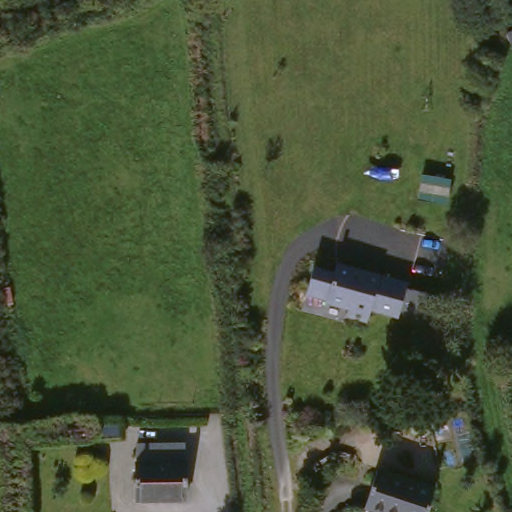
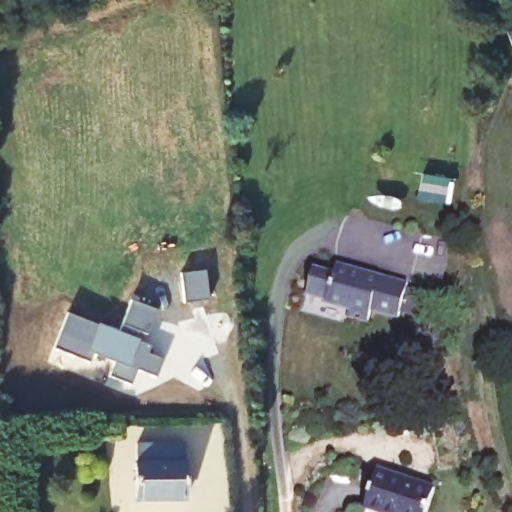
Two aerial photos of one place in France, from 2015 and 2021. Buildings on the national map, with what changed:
new [(434,181),(462,187),(458,211),(440,208),(429,205),(434,181)]
unchanged [(373,316),(368,328),(344,320),(346,314),(323,306),(324,303),(306,297),(314,272),(337,280),(341,268),(406,291),(396,323),(373,316)]
new [(137,368),(131,383),(109,374),(114,362),(92,352),(89,361),(53,346),(66,313),(96,325),(98,322),(119,330),(133,298),(155,308),(146,333),(137,330),(134,337),(151,344),(148,354),(164,360),(154,375),(137,368)]
unchanged [(183,453),(181,511),(134,512),(134,453),(183,453)]
unchanged [(379,472),(436,489),(430,512),(376,512),(369,510),(379,472)]

